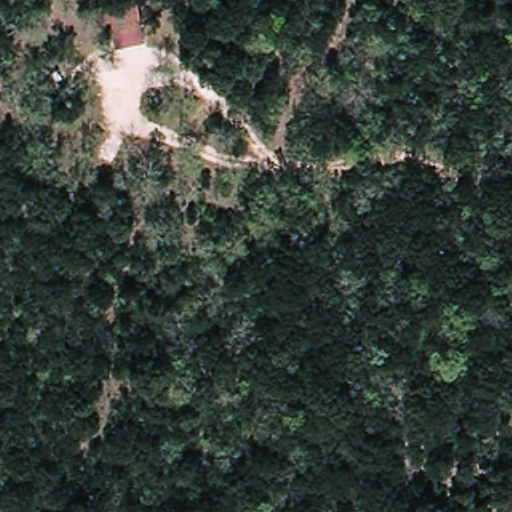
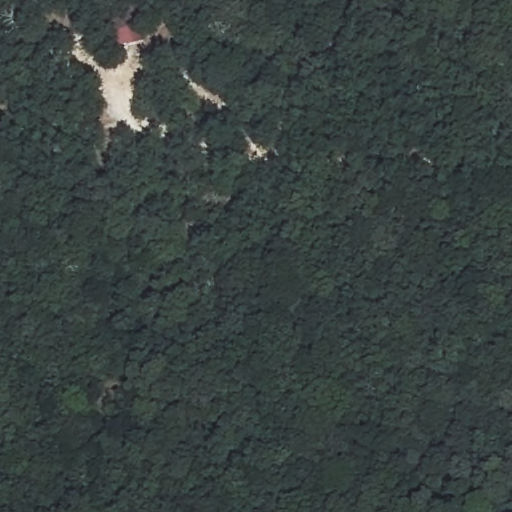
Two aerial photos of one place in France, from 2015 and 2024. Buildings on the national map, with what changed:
unchanged [(110,48),(102,7),(137,1),(145,42),(110,48)]

